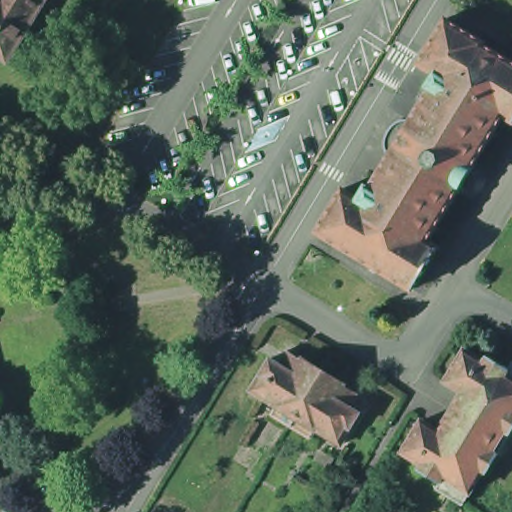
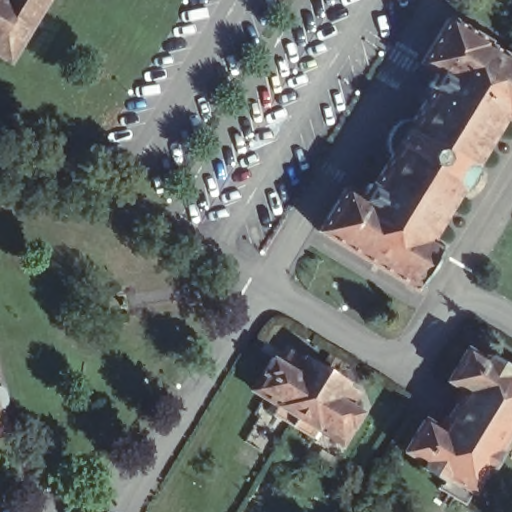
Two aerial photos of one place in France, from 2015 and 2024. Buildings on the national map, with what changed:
unchanged [(14,65),(0,57),(0,0),(54,0),(14,65)]
unchanged [(507,116),(477,167),(479,171),(482,171),(483,175),(480,176),(473,189),(470,188),(470,186),(465,187),(433,238),(445,245),(418,288),(322,230),(348,187),(363,197),(372,183),(377,186),(395,156),(392,152),(390,149),(389,146),(388,141),(388,138),(388,134),(390,131),(392,126),(395,124),(400,120),(403,119),(408,118),(412,118),(417,119),(435,88),(432,86),(440,72),(424,63),(451,18),(490,42),(488,45),(512,60),(512,119),(507,116)]
unchanged [(442,483),(445,477),(422,461),(425,455),(408,444),(427,414),(443,424),(468,384),(451,374),(470,343),(487,354),(490,349),(512,362),(512,436),(505,447),(492,469),(487,466),(475,487),(467,500),(442,483)]
unchanged [(271,415),(247,400),(267,369),(277,375),(285,362),(298,370),(301,372),(307,372),(310,374),(312,376),(313,378),(315,380),(320,384),(322,383),(325,383),(328,384),(330,386),(332,388),(333,392),(338,394),(352,403),(344,415),(355,422),(336,455),(310,439),(305,448),(266,424),(271,415)]
unchanged [(5,385),(8,389),(9,392),(10,396),(9,399),(5,404),(12,427),(0,430),(0,382),(5,384),(5,385)]

